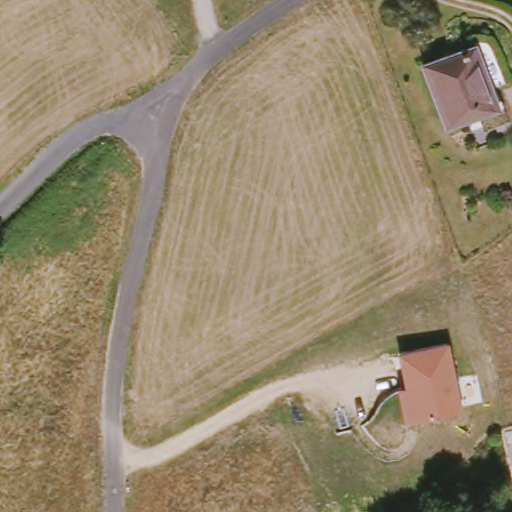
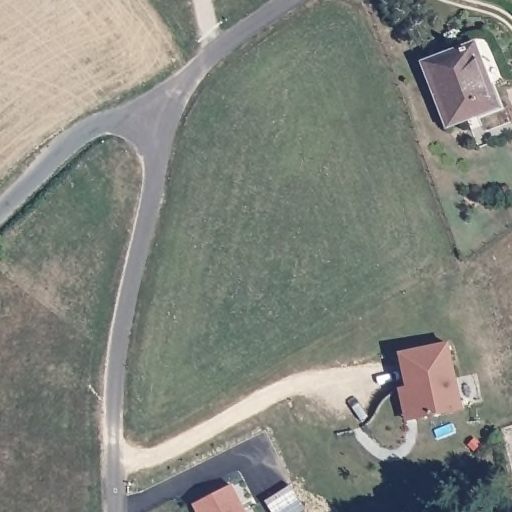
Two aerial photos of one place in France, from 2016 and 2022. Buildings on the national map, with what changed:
unchanged [(479,43),(482,48),(490,45),(502,77),(492,83),(500,107),(480,116),(487,131),(475,135),(467,122),(448,128),(424,62),(479,43)]
unchanged [(406,423),(400,390),(408,388),(401,356),(450,346),(465,413),(406,423)]
new [(246,512),(197,512),(193,506),(232,486),(246,512)]

